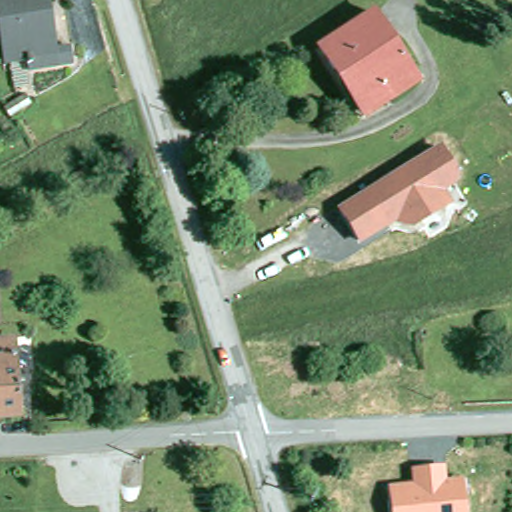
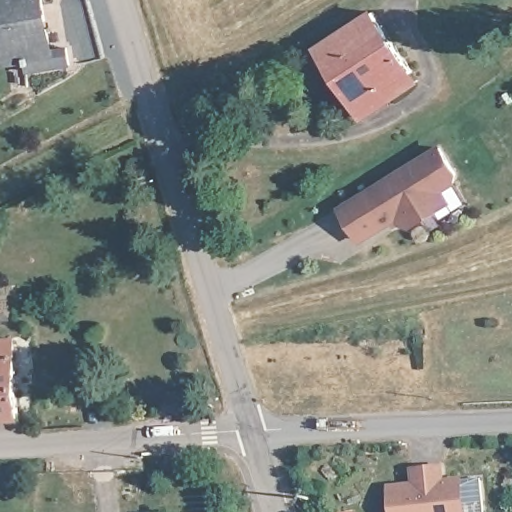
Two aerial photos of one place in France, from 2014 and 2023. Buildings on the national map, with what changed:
unchanged [(61,39),(64,57),(20,63),(19,57),(18,51),(0,54),(0,0),(38,0),(45,43),(48,41),(61,39)]
unchanged [(323,49),(377,14),(417,76),(422,84),(369,118),(363,109),(323,49)]
unchanged [(457,175),(457,183),(445,190),(452,204),(412,227),(397,222),(357,244),(337,208),(439,145),(457,175)]
unchanged [(0,416),(0,343),(12,342),(20,414),(0,416)]
unchanged [(412,483),(410,470),(445,465),(447,480),(463,479),(466,512),(390,512),(387,485),(412,483)]

